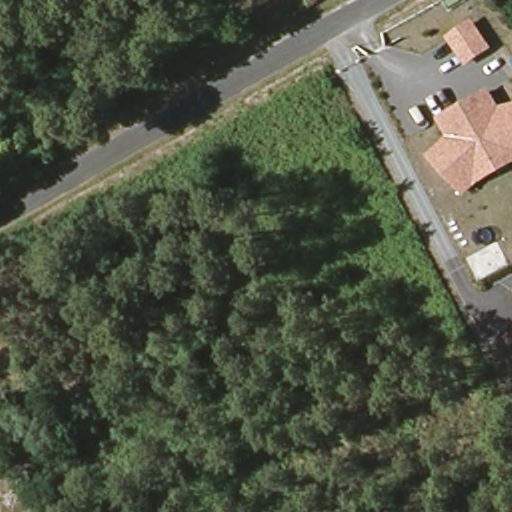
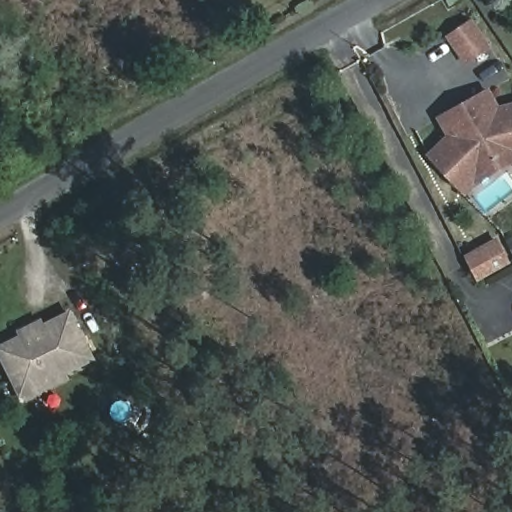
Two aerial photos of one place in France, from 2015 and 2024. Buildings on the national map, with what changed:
unchanged [(466,65),(446,34),(472,18),(492,49),(466,65)]
unchanged [(426,154),(448,135),(437,115),(489,86),(501,106),(512,104),(512,163),(465,192),(426,154)]
new [(16,329),(41,317),(43,323),(71,309),(95,359),(66,373),(69,379),(21,401),(0,358),(0,344),(18,335),(16,329)]

